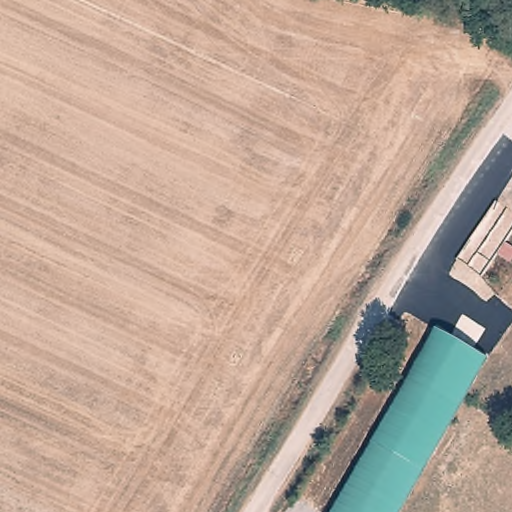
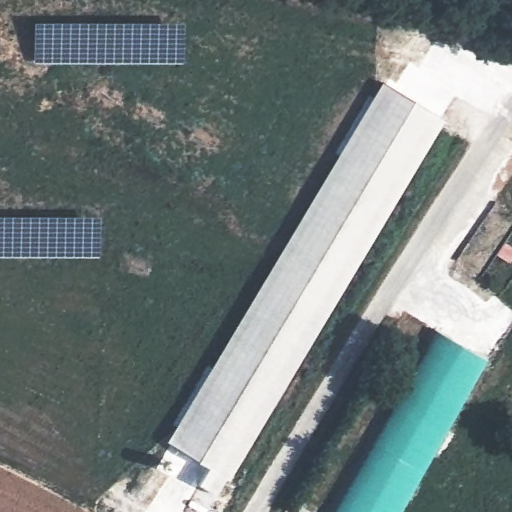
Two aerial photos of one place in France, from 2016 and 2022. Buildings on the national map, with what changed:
new [(383,81),(445,119),(229,479),(226,478),(216,494),(199,483),(208,466),(166,441),(383,81)]
unchanged [(491,359),(405,512),(331,512),(436,326),(491,359)]

